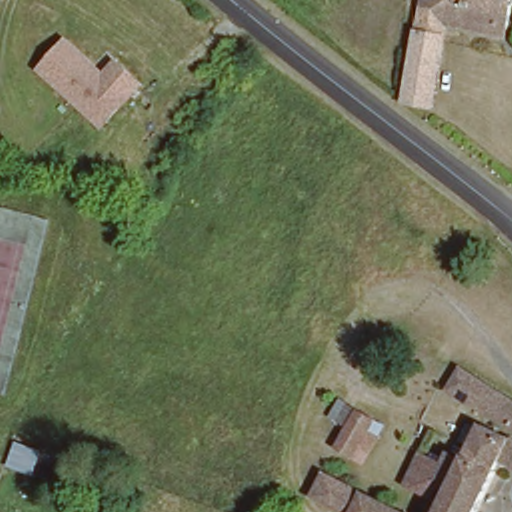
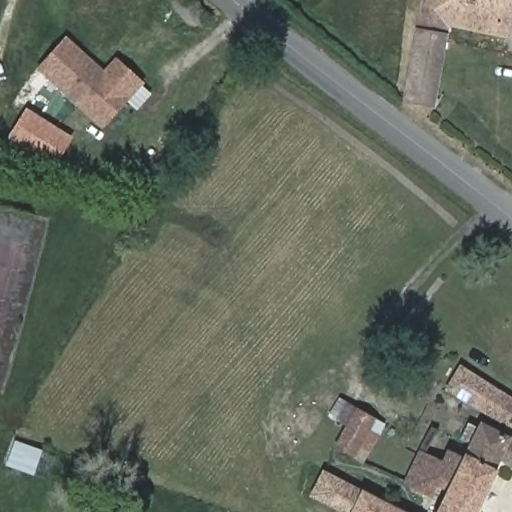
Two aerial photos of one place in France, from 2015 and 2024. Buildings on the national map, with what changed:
unchanged [(501,39),(451,26),(421,114),(399,107),(402,95),(425,0),(511,0),(501,39)]
unchanged [(118,58),(146,84),(105,129),(38,69),(67,37),(104,68),(118,58)]
new [(73,139),(53,167),(8,141),(26,107),(73,139)]
unchanged [(512,398),(512,435),(484,421),(480,419),(484,414),(444,390),(459,363),(512,398)]
unchanged [(344,423),(331,417),(340,398),(386,423),(363,462),(335,447),(344,423)]
unchanged [(403,487),(418,450),(444,459),(452,442),(464,448),(480,419),(484,421),(512,435),(512,474),(499,469),(476,512),(432,512),(436,502),(403,487)]
unchanged [(410,512),(344,512),(315,497),(323,470),(410,512)]

